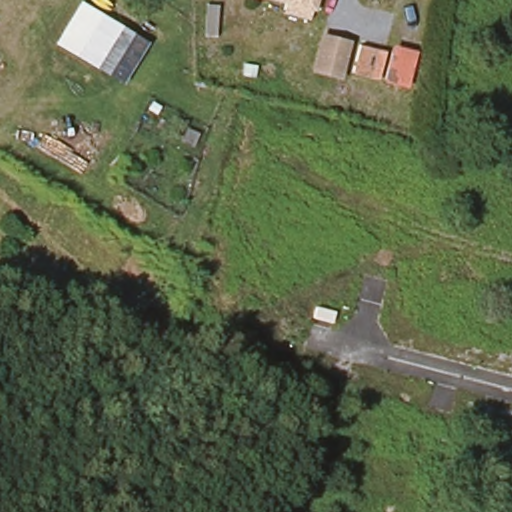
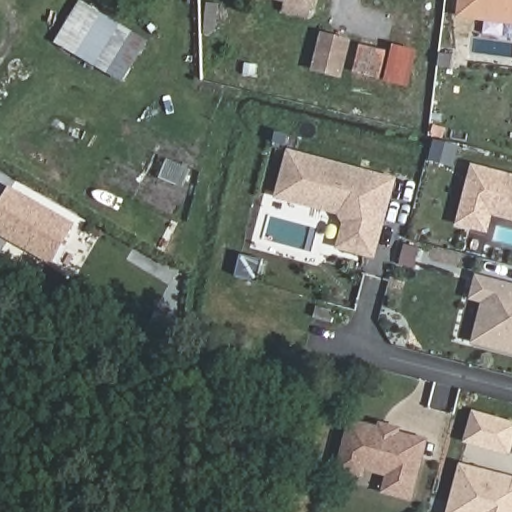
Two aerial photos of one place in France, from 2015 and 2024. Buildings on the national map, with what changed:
unchanged [(287,11),(289,1),(285,0),(319,0),(314,18),(287,11)]
new [(512,0),(512,22),(458,16),(460,0),(512,0)]
unchanged [(122,26),(96,70),(54,45),(81,1),(122,26)]
new [(122,26),(148,42),(122,85),(96,70),(122,26)]
unchanged [(349,41),(340,79),(311,72),(320,35),(349,41)]
unchanged [(407,89),(357,75),(363,46),(392,54),(393,46),(418,51),(407,89)]
new [(375,260),(336,250),(342,224),(337,217),(273,201),(287,150),(396,179),(375,260)]
new [(488,234),(456,226),(471,165),(512,175),(512,222),(492,217),(488,234)]
new [(51,266),(0,236),(0,203),(10,186),(76,224),(51,266)]
new [(239,256),(262,261),(255,290),(232,285),(239,256)]
new [(481,305),(468,301),(475,275),(512,284),(512,355),(471,345),(481,305)]
new [(471,411),(512,422),(512,451),(511,457),(462,443),(471,411)]
new [(381,494),(385,478),(366,472),(364,480),(335,471),(349,418),(378,427),(378,423),(400,429),(398,433),(428,442),(412,502),(381,494)]
new [(459,464),(512,477),(512,512),(446,512),(459,464)]

